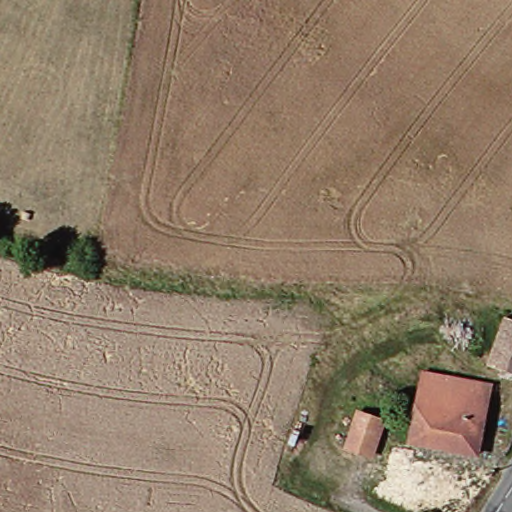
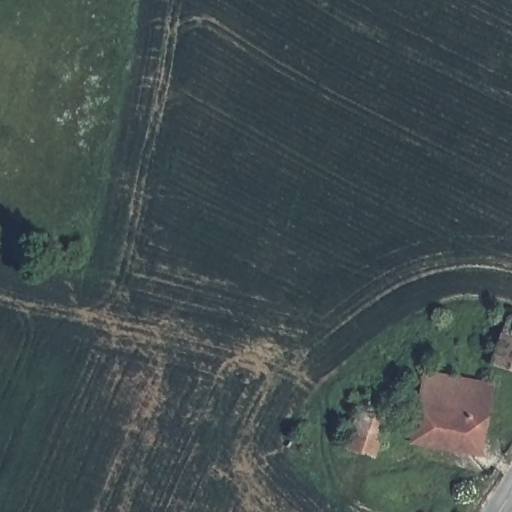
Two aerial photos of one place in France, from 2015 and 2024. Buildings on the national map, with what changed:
unchanged [(512,378),(484,365),(507,319),(512,321),(512,378)]
unchanged [(493,391),(469,465),(406,443),(429,370),(493,391)]
unchanged [(359,420),(382,426),(370,464),(347,458),(359,420)]

